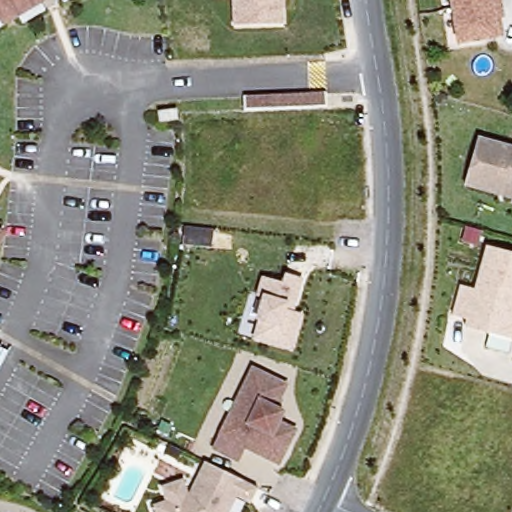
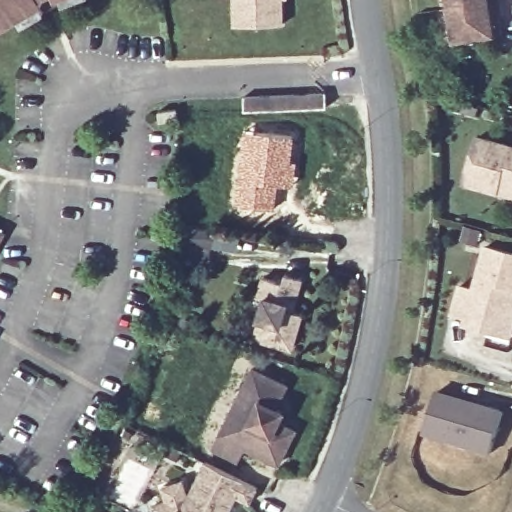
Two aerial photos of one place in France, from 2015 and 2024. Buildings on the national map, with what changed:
unchanged [(40,2),(45,9),(24,22),(19,14),(2,24),(0,25),(0,0),(43,0),(40,2)]
unchanged [(46,5),(43,0),(56,0),(46,5)]
unchanged [(232,0),(283,0),(283,24),(232,26),(232,0)]
unchanged [(501,40),(463,47),(453,48),(445,0),(504,0),(507,19),(503,20),(507,39),(501,40)]
unchanged [(327,105),(286,107),(245,108),(245,94),(326,91),(327,105)]
unchanged [(179,117),(160,120),(159,109),(177,106),(179,117)]
new [(241,130),(294,135),(292,160),(296,160),(293,187),(278,185),(275,209),(232,203),(241,130)]
unchanged [(478,136),(512,145),(512,197),(500,194),(465,184),(478,136)]
new [(184,226),(211,230),(209,246),(207,260),(180,257),(182,242),(184,226)]
unchanged [(0,240),(0,228),(5,231),(0,240)]
unchanged [(466,322),(452,318),(460,288),(475,292),(486,249),(512,256),(512,342),(465,329),(466,322)]
unchanged [(282,282),(285,272),(301,278),(291,312),(301,314),(291,346),(256,336),(261,321),(256,318),(263,296),(257,293),(262,277),(282,282)]
unchanged [(285,381),(273,404),(281,407),(276,418),(293,427),(277,460),(242,443),(235,457),(211,445),(251,365),(285,381)]
new [(434,394),(502,413),(490,455),(422,436),(434,394)]
unchanged [(165,498),(159,483),(183,476),(188,491),(205,460),(256,485),(249,502),(235,496),(227,512),(154,512),(151,503),(165,498)]

